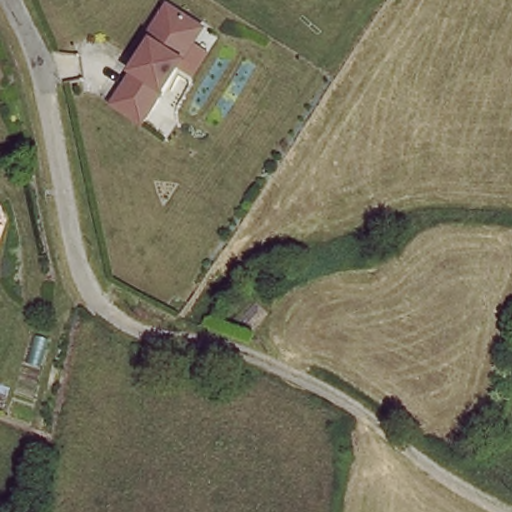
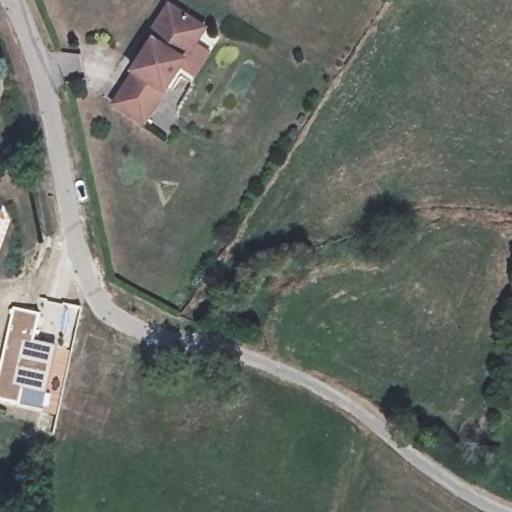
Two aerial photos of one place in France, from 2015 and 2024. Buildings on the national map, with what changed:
unchanged [(132,75),(130,74),(150,43),(145,40),(167,8),(202,31),(173,75),(140,126),(111,107),(132,75)]
unchanged [(0,216),(0,213),(1,214),(0,216)]
new [(40,312),(35,340),(57,346),(47,391),(46,412),(0,401),(0,355),(10,306),(40,312)]

